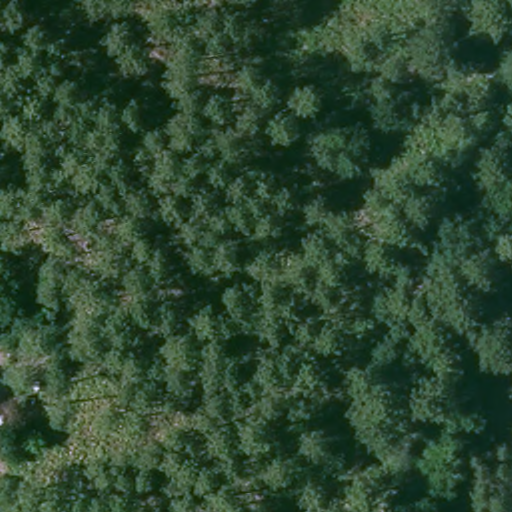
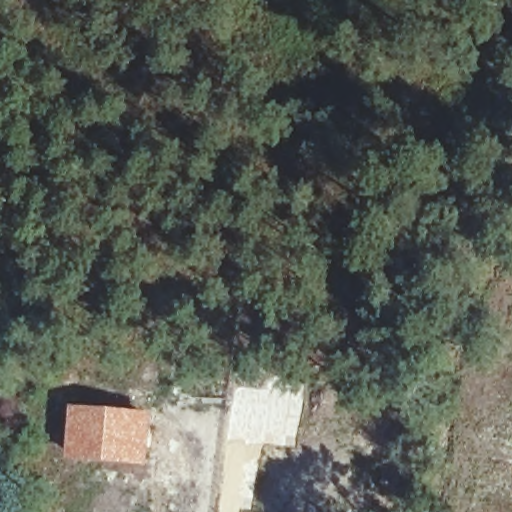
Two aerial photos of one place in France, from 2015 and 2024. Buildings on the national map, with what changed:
new [(72,404),(154,411),(150,467),(69,461),(72,404)]

